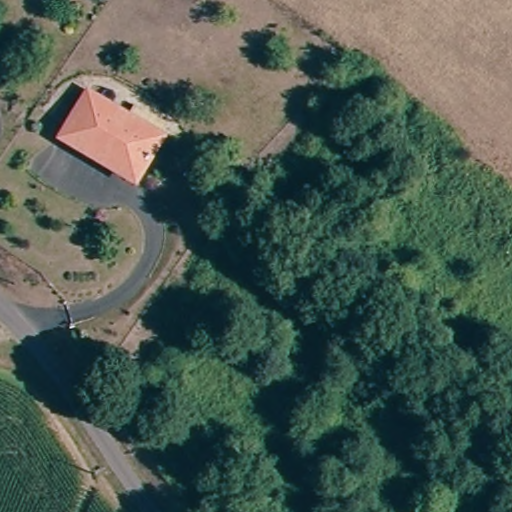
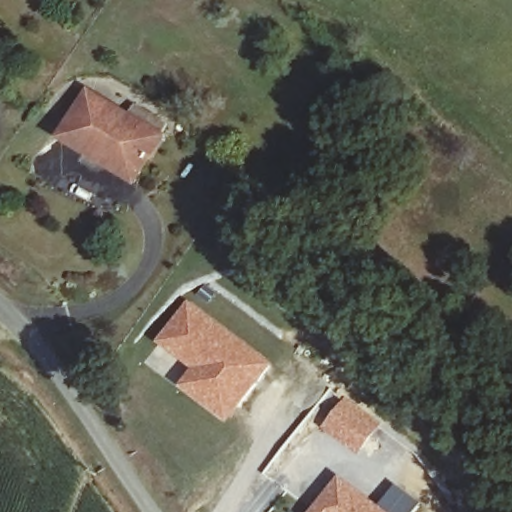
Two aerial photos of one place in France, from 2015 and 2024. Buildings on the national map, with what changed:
unchanged [(126,175),(87,152),(66,140),(70,134),(90,100),(160,141),(139,177),(137,181),(126,175)]
new [(185,299),(271,363),(224,425),(175,387),(189,369),(154,342),(185,299)]
new [(345,399),(376,424),(355,449),(325,426),(345,399)]
new [(339,478),(351,488),(348,492),(354,496),(357,492),(375,506),(383,512),(312,512),(339,478)]
new [(394,482),(420,502),(412,512),(383,512),(375,506),(394,482)]

